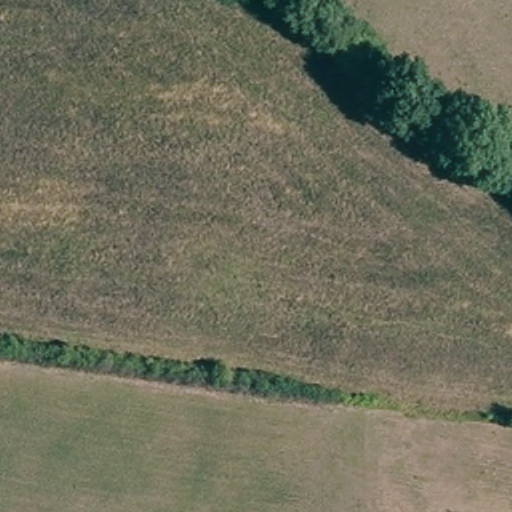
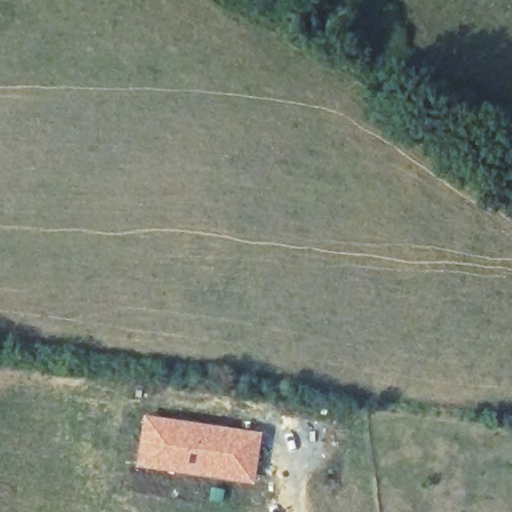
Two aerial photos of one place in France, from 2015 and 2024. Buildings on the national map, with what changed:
new [(142,412),(261,430),(254,484),(132,465),(142,412)]

